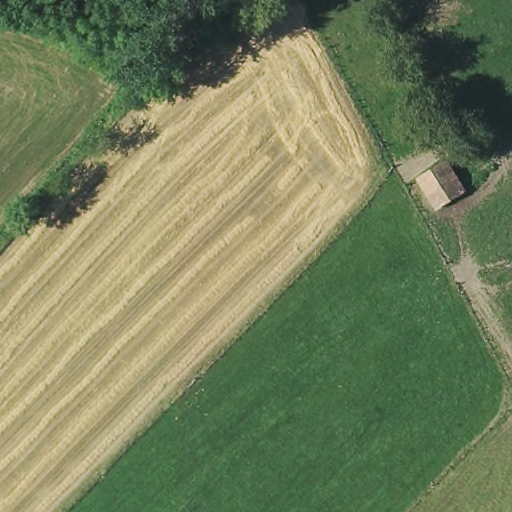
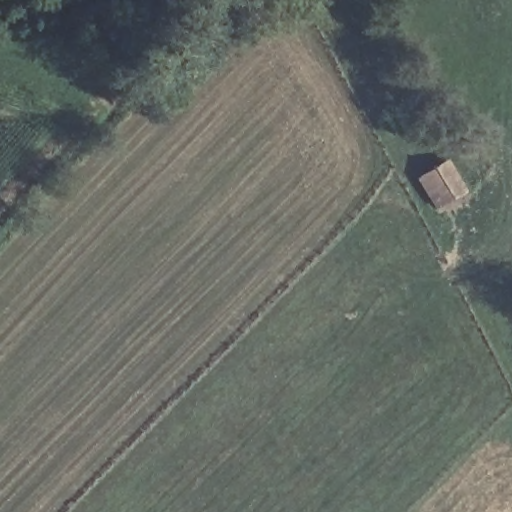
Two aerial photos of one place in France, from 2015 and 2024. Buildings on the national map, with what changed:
unchanged [(448,161),(468,196),(435,214),(417,182),(448,161)]

